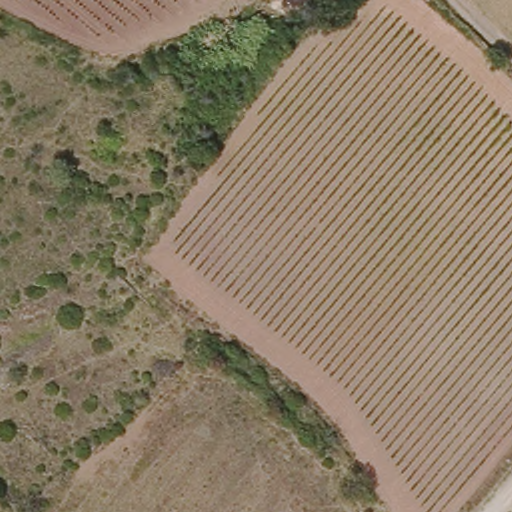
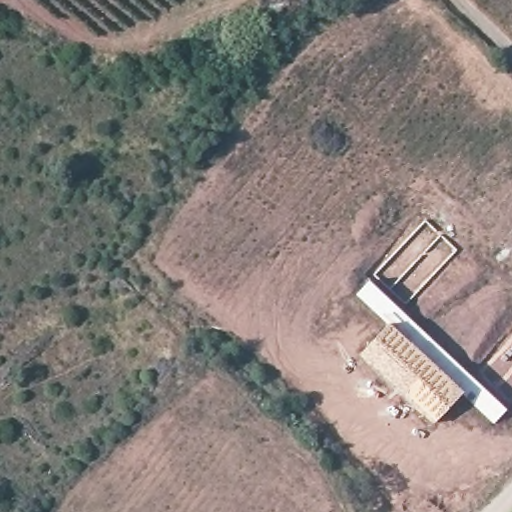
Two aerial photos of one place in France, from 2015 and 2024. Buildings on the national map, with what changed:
new [(433,424),(357,355),(387,324),(355,295),(369,280),(507,410),(494,424),(461,394),(433,424)]

